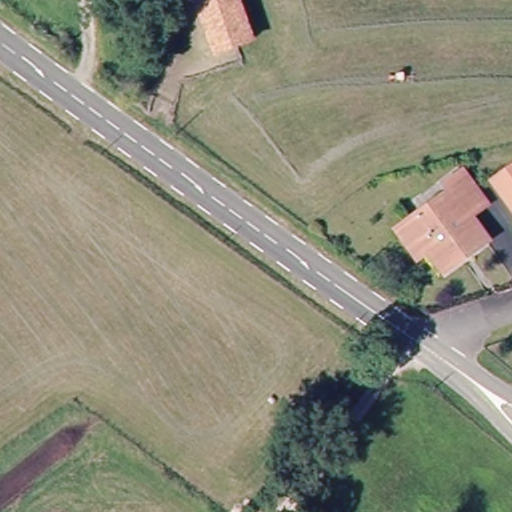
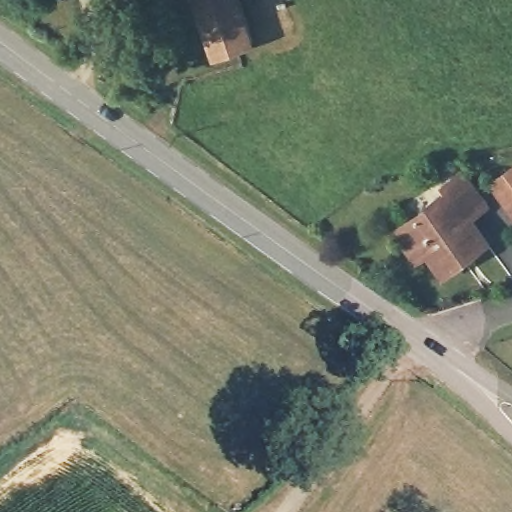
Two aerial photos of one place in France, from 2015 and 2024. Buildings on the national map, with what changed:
unchanged [(191,0),(242,0),(257,43),(241,49),(214,61),(190,0),(191,0)]
unchanged [(512,168),(512,203),(497,179),(512,168)]
unchanged [(401,239),(416,227),(452,199),(445,188),(465,173),(492,209),(480,217),(476,220),(491,242),(448,277),(434,255),(420,266),(401,239)]

